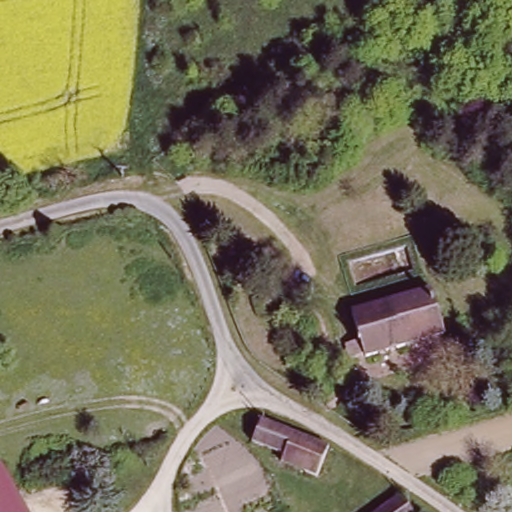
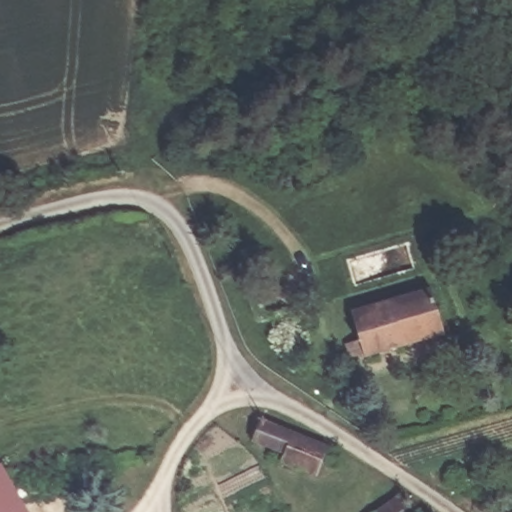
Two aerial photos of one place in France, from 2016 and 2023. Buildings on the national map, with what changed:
unchanged [(354,311),(430,289),(444,336),(369,358),(354,311)]
unchanged [(273,423),(310,437),(331,445),(321,476),(277,460),(281,451),(254,442),(261,418),(273,423)]
unchanged [(0,466),(3,464),(31,512),(0,512),(0,466)]
unchanged [(403,494),(408,497),(413,512),(377,512),(403,494)]

